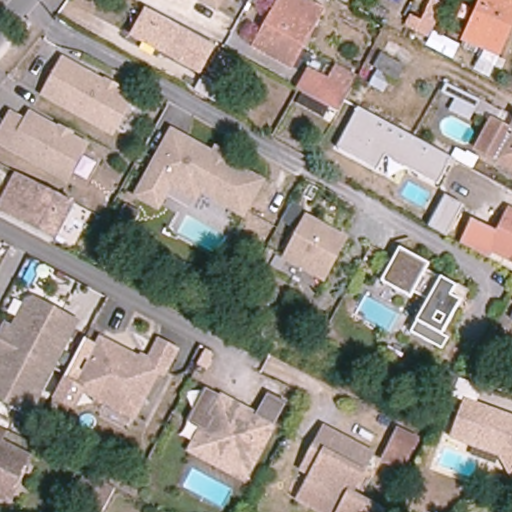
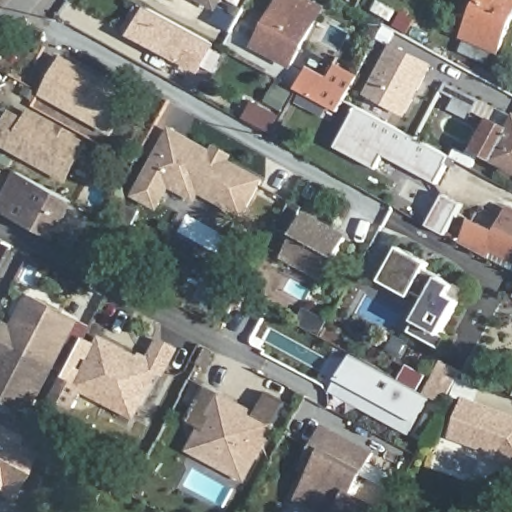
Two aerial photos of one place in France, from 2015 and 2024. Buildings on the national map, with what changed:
unchanged [(200,0),(221,0),(216,9),(200,0)]
unchanged [(292,67),(255,46),(263,32),(260,31),(267,17),(270,19),(281,0),(308,0),(324,9),(292,67)]
unchanged [(431,0),(442,0),(446,2),(433,32),(408,21),(411,14),(423,19),(431,0)]
unchanged [(512,0),(512,24),(500,52),(466,37),(482,0),(512,0)]
unchanged [(204,72),(177,59),(134,35),(148,8),(192,32),(219,46),(204,72)]
new [(406,117),(365,95),(392,42),(434,64),(406,117)]
demolished [(399,81),(392,77),(383,94),(370,84),(376,71),(372,69),(383,51),(406,65),(399,81)]
unchanged [(114,136),(39,94),(61,55),(135,95),(114,136)]
unchanged [(339,114),(293,90),(307,65),(331,77),(337,62),(359,75),(339,114)]
unchanged [(231,110),(222,105),(199,92),(206,77),(230,91),(239,96),(231,110)]
unchanged [(472,113),(470,120),(450,110),(452,105),(438,99),(446,82),(512,116),(512,123),(507,132),(488,122),(472,113)]
new [(255,104),(280,118),(270,134),(245,120),(255,104)]
unchanged [(437,182),(384,155),(377,169),(338,148),(357,109),(450,156),(437,182)]
unchanged [(0,147),(0,124),(7,110),(25,117),(30,110),(90,142),(69,182),(0,147)]
unchanged [(512,123),(512,170),(473,149),(488,122),(507,132),(512,123)]
unchanged [(260,180),(240,216),(196,190),(192,198),(169,187),(157,209),(134,195),(171,129),(260,180)]
unchanged [(0,209),(19,173),(74,203),(55,240),(0,211),(0,209)]
unchanged [(446,236),(427,225),(444,195),(463,205),(446,236)]
unchanged [(463,245),(474,222),(500,234),(510,211),(512,211),(512,270),(490,258),(463,245)]
unchanged [(322,278),(285,256),(303,217),(341,238),(322,278)]
unchanged [(422,269),(452,286),(448,295),(458,301),(440,336),(445,338),(439,348),(409,332),(425,301),(411,292),(409,297),(380,281),(397,246),(427,262),(422,269)]
unchanged [(174,257),(190,267),(181,283),(164,274),(174,257)]
unchanged [(14,328),(19,320),(29,301),(35,298),(78,321),(30,413),(0,397),(0,336),(6,324),(14,328)]
unchanged [(510,319),(512,314),(512,320),(510,319)]
unchanged [(149,368),(160,346),(176,355),(165,377),(160,375),(142,407),(135,422),(77,391),(85,377),(102,345),(103,345),(149,368)]
new [(354,356),(434,399),(415,432),(413,436),(335,393),(340,381),(354,356)]
unchanged [(201,433),(210,415),(221,396),(275,424),(256,462),(247,479),(226,468),(192,451),(201,433)]
unchanged [(512,414),(512,483),(510,484),(497,452),(449,436),(465,397),(512,414)]
unchanged [(0,440),(0,429),(5,431),(0,440)]
unchanged [(333,430),(381,456),(388,441),(408,452),(396,469),(382,460),(377,467),(370,463),(354,495),(345,512),(342,512),(300,493),(333,430)]
unchanged [(0,494),(0,446),(20,457),(0,494)]
unchanged [(103,481),(106,482),(116,465),(140,478),(131,496),(116,488),(103,512),(90,512),(87,511),(72,502),(89,473),(103,481)]
unchanged [(342,512),(312,512),(296,503),(300,493),(342,512)]
unchanged [(354,495),(384,512),(345,512),(354,495)]
unchanged [(494,508),(496,512),(488,512),(494,508)]

